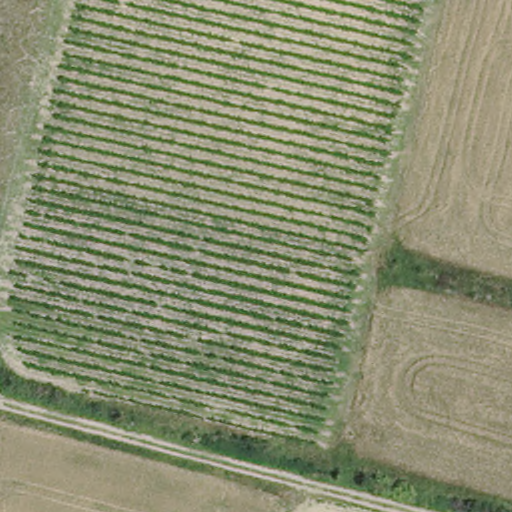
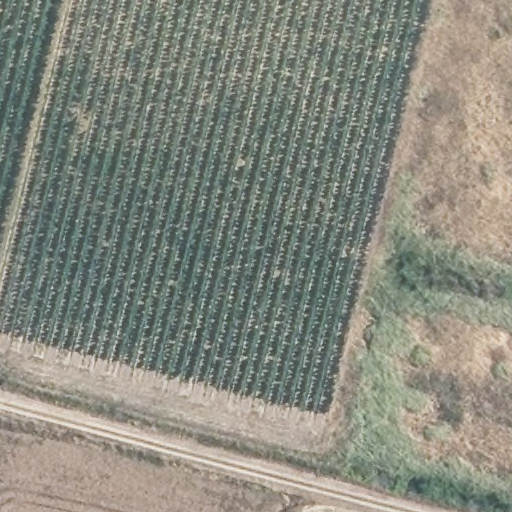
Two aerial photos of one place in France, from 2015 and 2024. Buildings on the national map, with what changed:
[]

